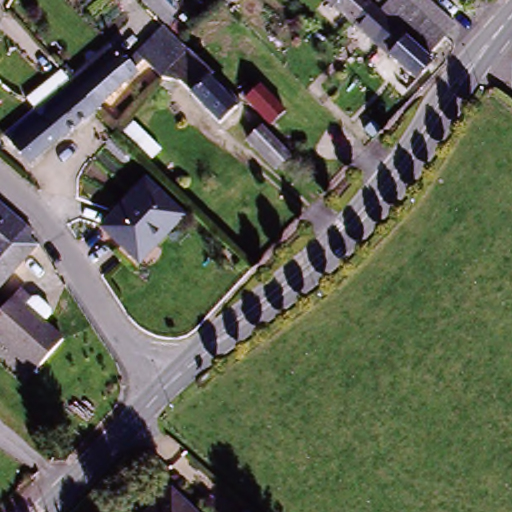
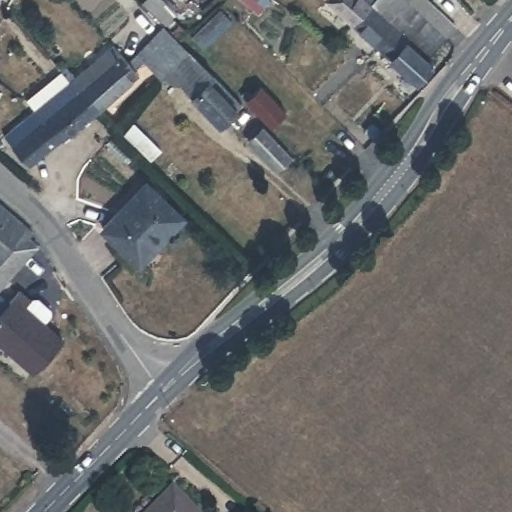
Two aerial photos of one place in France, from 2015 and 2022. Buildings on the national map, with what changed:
unchanged [(151,0),(158,0),(176,20),(168,27),(146,5),(151,0)]
unchanged [(329,0),(389,0),(358,30),(329,0)]
unchanged [(437,72),(418,91),(386,58),(358,30),(389,0),(428,0),(457,32),(444,46),(438,51),(428,63),(437,72)]
unchanged [(226,131),(191,94),(176,87),(150,59),(182,28),(199,47),(208,56),(196,67),(208,80),(240,117),(226,131)]
unchanged [(96,65),(112,49),(120,57),(135,75),(105,104),(82,78),(96,65)]
unchanged [(45,160),(22,136),(82,78),(105,104),(45,160)]
unchanged [(264,91),(284,114),(282,115),(273,124),(254,100),(261,93),(264,91)]
unchanged [(278,122),(300,147),(276,172),(255,146),(278,122)]
unchanged [(137,197),(172,232),(137,268),(102,232),(137,197)]
unchanged [(29,245),(36,254),(0,290),(0,201),(34,241),(29,245)]
unchanged [(16,298),(22,292),(35,306),(37,303),(44,302),(55,313),(53,320),(45,327),(64,347),(39,371),(0,332),(0,293),(5,287),(16,298)]
unchanged [(189,512),(149,512),(166,492),(189,512)]

